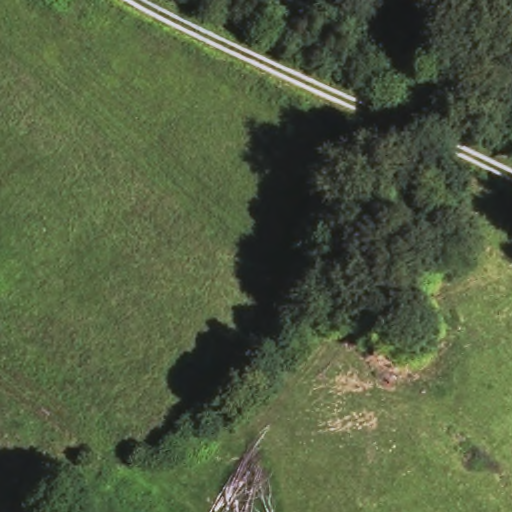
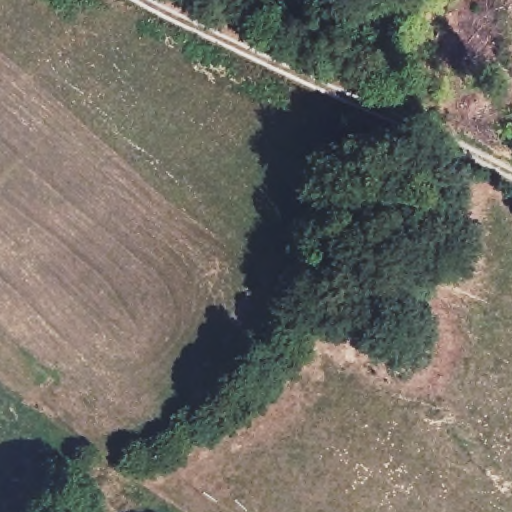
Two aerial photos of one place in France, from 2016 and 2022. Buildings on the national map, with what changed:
[]

